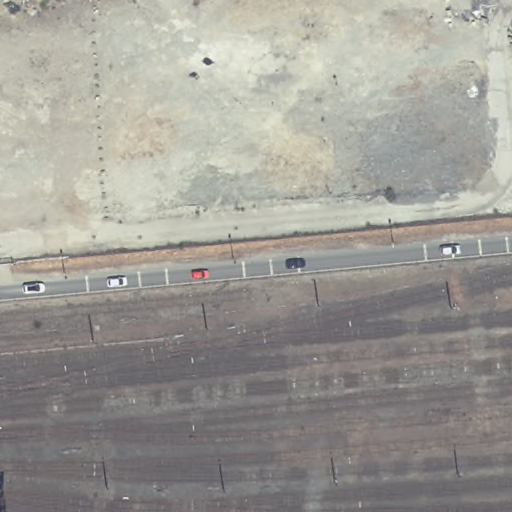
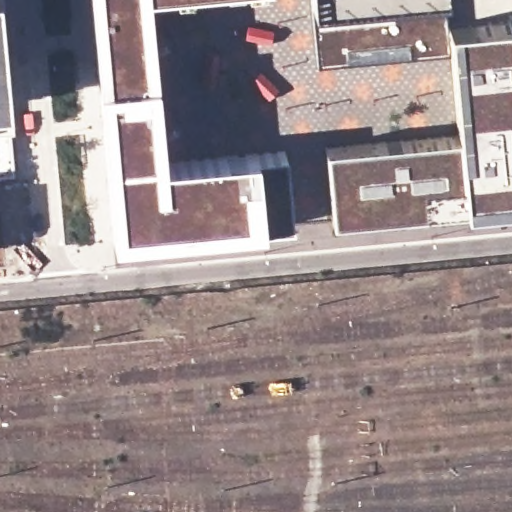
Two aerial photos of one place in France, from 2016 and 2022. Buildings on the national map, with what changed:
new [(112,240),(96,84),(88,0),(149,0),(156,79),(164,161),(256,151),(286,150),(293,223),(262,228),(112,240)]
new [(332,219),(324,146),(456,131),(448,48),(319,64),(312,6),(311,0),(447,0),(451,24),(511,19),(512,36),(512,202),(465,205),(332,219)]

